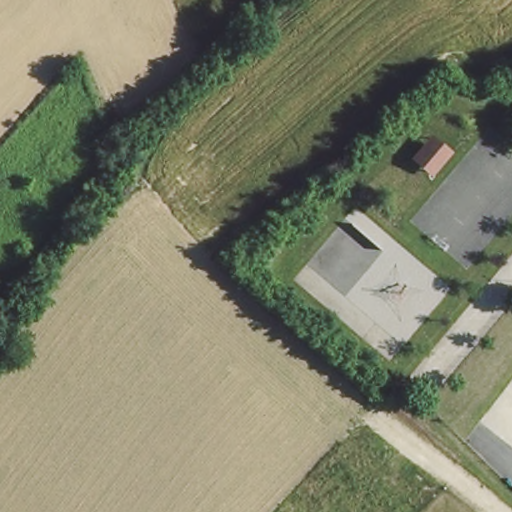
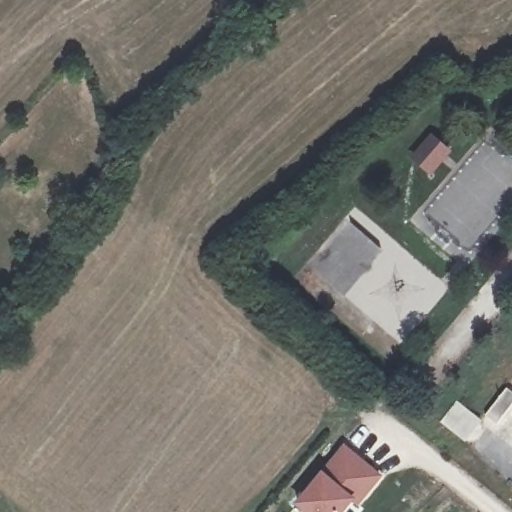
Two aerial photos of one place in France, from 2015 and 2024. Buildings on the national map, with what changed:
new [(450,149),(429,174),(410,159),(431,134),(450,149)]
new [(345,512),(305,512),(298,506),(345,450),(380,479),(362,501),(358,507),(353,502),(345,512)]

